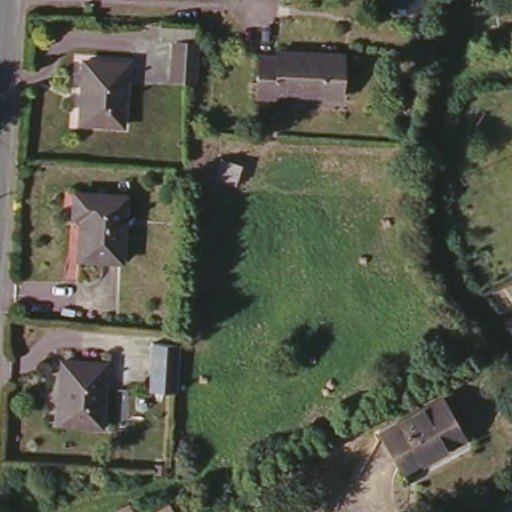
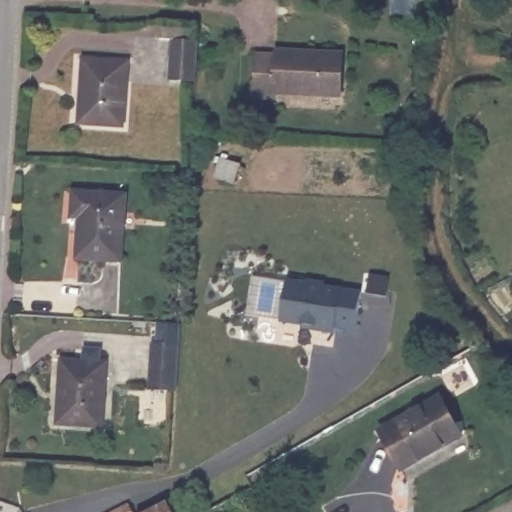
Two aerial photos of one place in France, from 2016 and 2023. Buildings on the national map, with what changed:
unchanged [(197,77),(172,75),(174,39),(200,40),(197,77)]
unchanged [(335,89),(269,84),(268,92),(252,91),(255,50),(272,51),(272,46),(337,50),(335,89)]
unchanged [(123,58),(120,122),(77,118),(81,55),(123,58)]
unchanged [(128,194),(124,259),(84,257),(87,214),(77,213),(79,191),(128,194)]
new [(305,280),(305,278),(323,281),(323,282),(360,289),(355,325),(334,322),(334,328),(315,325),(315,322),(280,317),(286,277),(305,280)]
unchanged [(182,341),(179,388),(152,387),(155,339),(182,341)]
unchanged [(107,364),(102,425),(60,421),(64,361),(107,364)]
unchanged [(440,394),(463,434),(402,467),(377,427),(440,394)]
unchanged [(170,499),(176,512),(146,512),(170,499)]
unchanged [(130,501),(135,512),(108,512),(130,501)]

